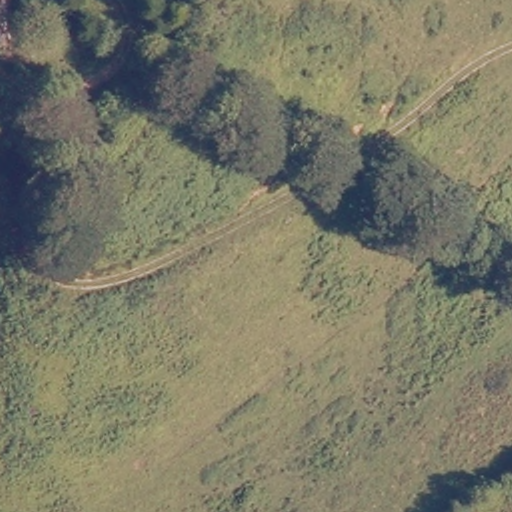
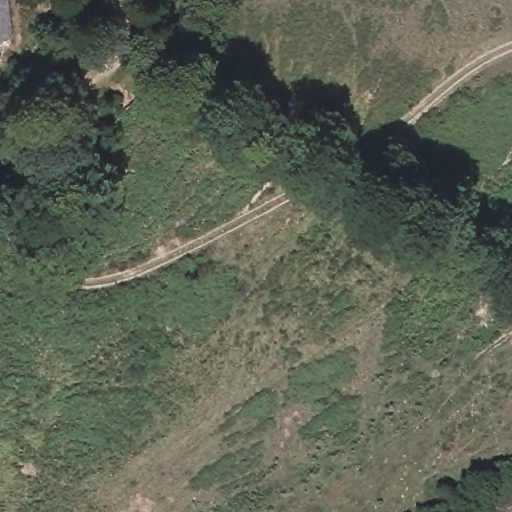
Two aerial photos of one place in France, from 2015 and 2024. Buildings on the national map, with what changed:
unchanged [(0,25),(0,0),(10,0),(12,23),(0,25)]

